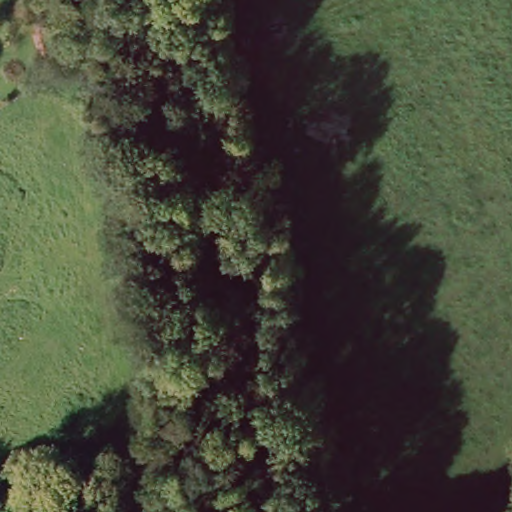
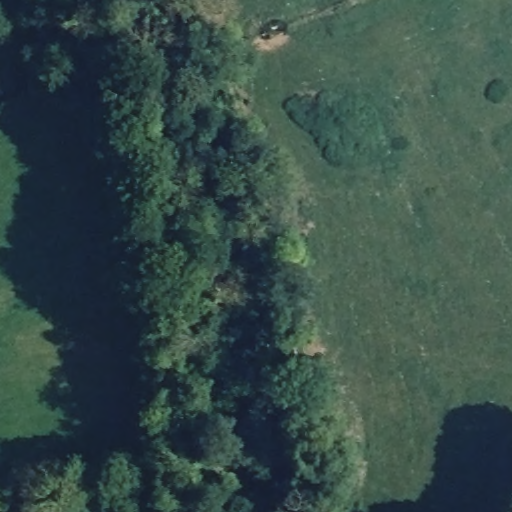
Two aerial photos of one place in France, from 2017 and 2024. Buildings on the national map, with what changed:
unchanged [(50,25),(58,44),(46,48),(39,29),(50,25)]

